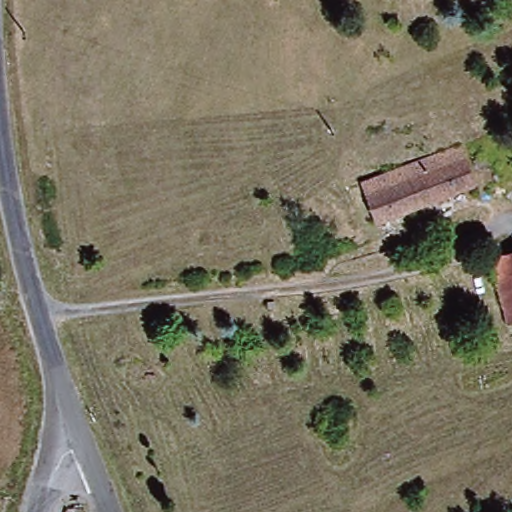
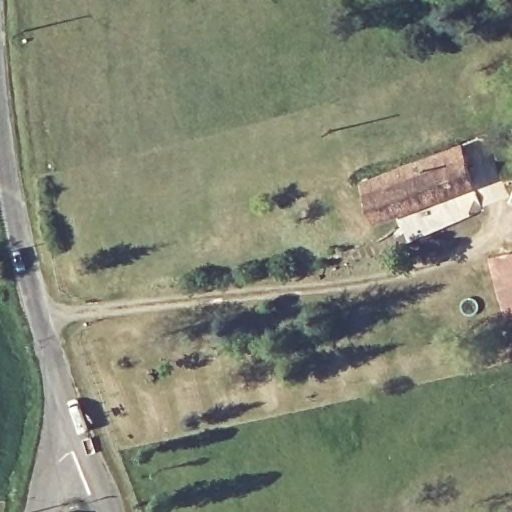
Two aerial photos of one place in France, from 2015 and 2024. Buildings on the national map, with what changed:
unchanged [(358,183),(450,150),(457,148),(466,175),(472,190),(374,225),(358,183)]
unchanged [(506,325),(490,264),(512,257),(512,323),(506,325)]

